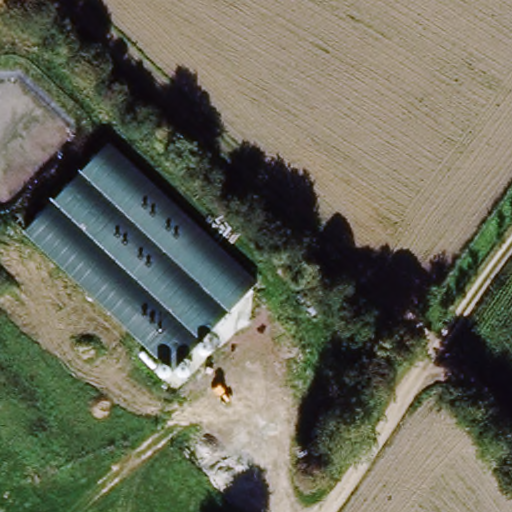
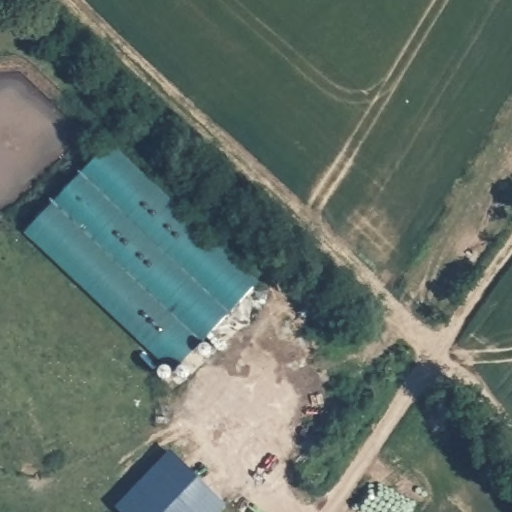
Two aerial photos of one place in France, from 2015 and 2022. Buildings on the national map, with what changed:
unchanged [(56,203),(52,200),(111,145),(258,282),(170,371),(25,234),(56,203)]
new [(172,450),(230,505),(223,512),(120,512),(115,507),(172,450)]

